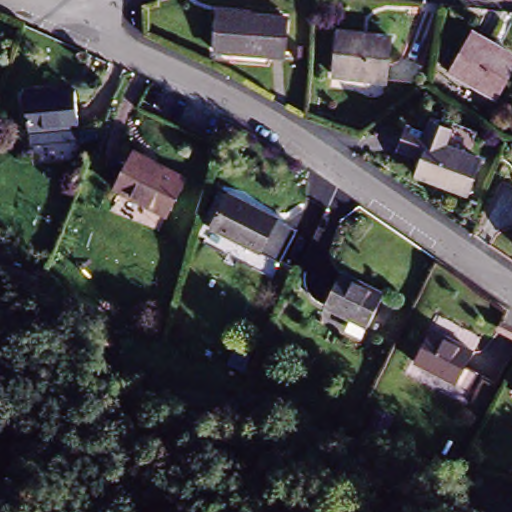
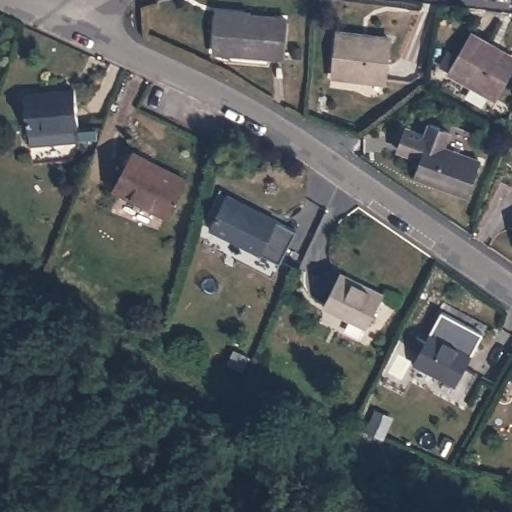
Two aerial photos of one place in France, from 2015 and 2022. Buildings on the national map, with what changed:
unchanged [(284,58),(214,50),(217,12),(287,20),(284,58)]
unchanged [(384,78),(334,72),(339,27),(359,30),(371,31),(388,33),(384,78)]
unchanged [(451,74),(441,68),(449,51),(459,57),(472,34),(492,46),(502,52),(512,58),(512,69),(494,99),(451,74)]
unchanged [(25,140),(24,126),(20,89),(70,84),(73,121),(73,135),(25,140)]
unchanged [(415,181),(421,164),(397,156),(406,132),(425,139),(429,128),(449,135),(443,151),(481,165),(468,201),(415,181)]
unchanged [(167,218),(113,189),(134,150),(187,179),(167,218)]
unchanged [(261,253),(211,227),(228,194),(278,220),(261,253)]
unchanged [(366,328),(325,307),(342,273),(383,295),(366,328)]
unchanged [(461,391),(450,385),(409,363),(428,330),(468,352),(463,361),(473,367),(461,391)]
unchanged [(392,419),(381,439),(365,430),(376,411),(392,419)]

